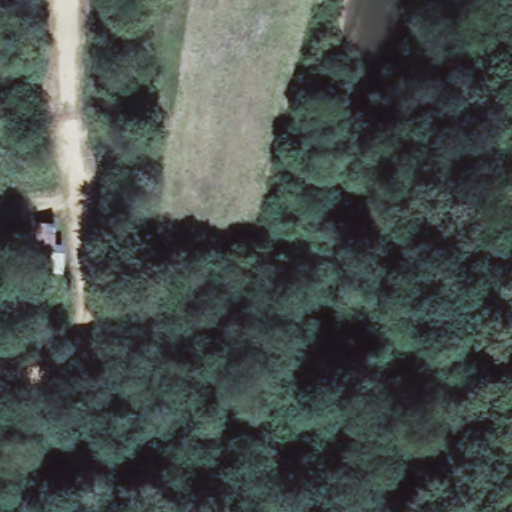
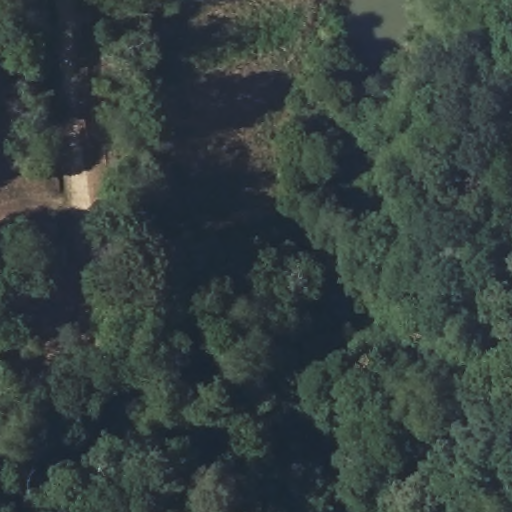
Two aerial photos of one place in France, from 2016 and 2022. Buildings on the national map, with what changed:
unchanged [(55,220),(56,240),(66,241),(66,269),(38,269),(36,221),(55,220)]

